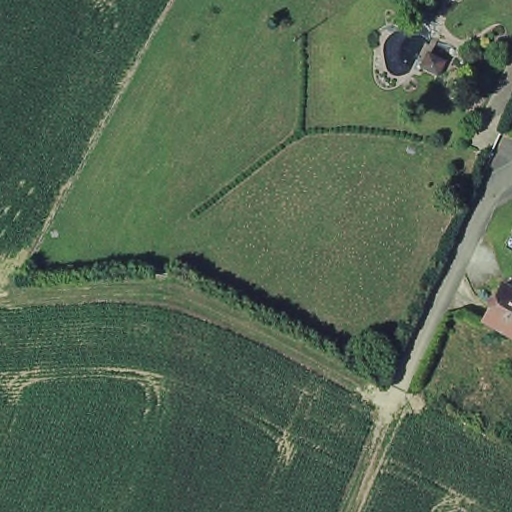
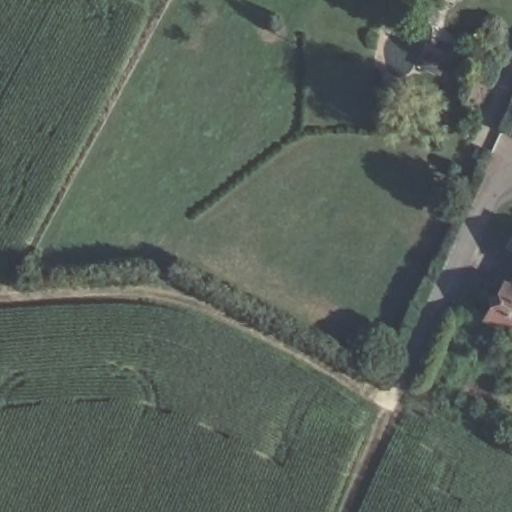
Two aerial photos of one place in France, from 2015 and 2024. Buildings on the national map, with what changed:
unchanged [(512,242),(512,247),(510,246),(512,242)]
unchanged [(495,305),(492,298),(501,294),(507,283),(512,286),(512,331),(488,318),(495,305)]

